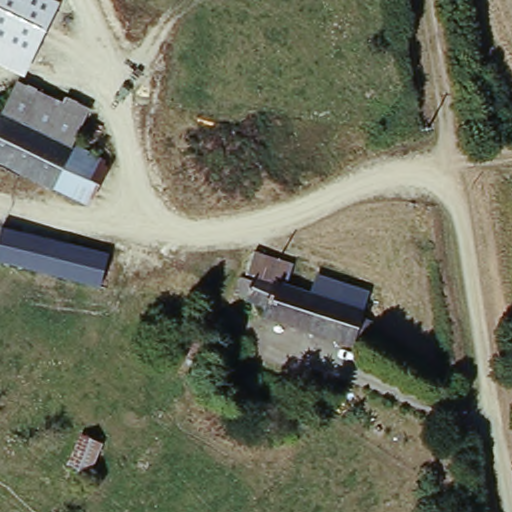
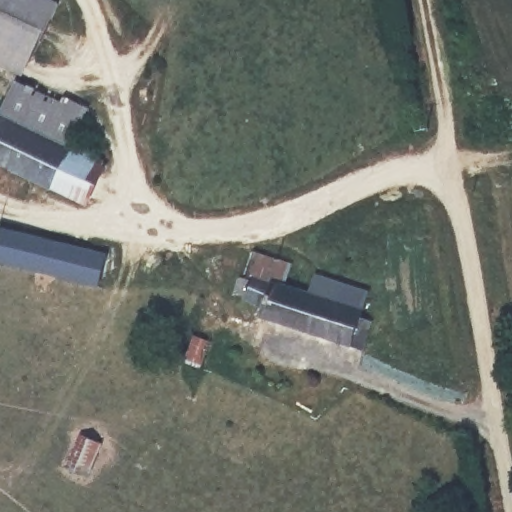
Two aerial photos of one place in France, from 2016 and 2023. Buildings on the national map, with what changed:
unchanged [(25,77),(0,65),(0,0),(53,0),(60,4),(25,77)]
unchanged [(22,85),(90,117),(72,150),(41,135),(4,116),(22,85)]
unchanged [(41,135),(72,150),(75,151),(57,189),(0,161),(0,114),(4,116),(41,135)]
unchanged [(75,151),(110,168),(91,205),(57,189),(75,151)]
unchanged [(63,279),(27,271),(0,264),(0,247),(4,235),(69,250),(63,279)]
unchanged [(109,260),(101,287),(63,279),(69,250),(109,260)]
unchanged [(254,278),(245,276),(254,253),(302,270),(295,292),(312,297),(318,276),(370,292),(360,322),(372,327),(365,348),(265,321),(269,307),(247,302),(247,300),(231,295),(238,277),(253,283),(254,278)]
unchanged [(108,452),(91,482),(63,466),(80,436),(108,452)]

